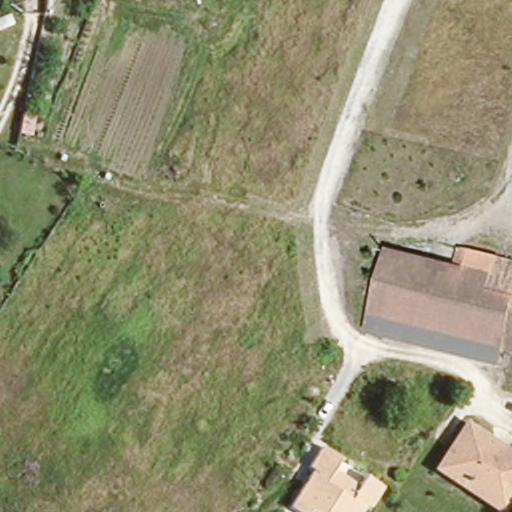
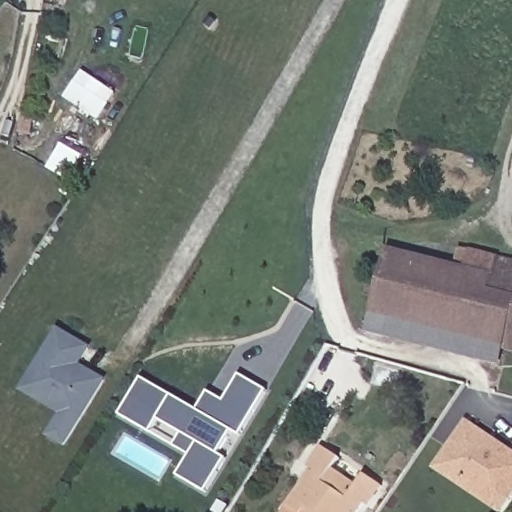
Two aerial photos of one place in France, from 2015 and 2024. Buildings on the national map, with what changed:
unchanged [(467,340),(385,314),(380,336),(363,331),(387,249),(462,273),(467,256),(490,263),(467,340)]
unchanged [(512,269),(512,355),(495,349),(467,340),(490,263),(494,264),(512,269)]
unchanged [(380,336),(385,314),(467,340),(495,349),(488,370),(460,362),(380,336)]
new [(66,449),(50,439),(63,414),(20,392),(56,329),(92,350),(82,367),(109,382),(66,449)]
new [(210,495),(177,478),(189,456),(120,416),(141,376),(197,411),(209,392),(225,403),(242,372),(271,390),(210,495)]
unchanged [(512,499),(503,512),(499,512),(436,471),(467,420),(512,450),(512,499)]
unchanged [(340,458),(333,467),(360,485),(365,476),(382,488),(370,509),(365,507),(361,512),(310,512),(309,512),(295,512),(289,508),(313,472),(308,468),(321,447),(340,458)]

